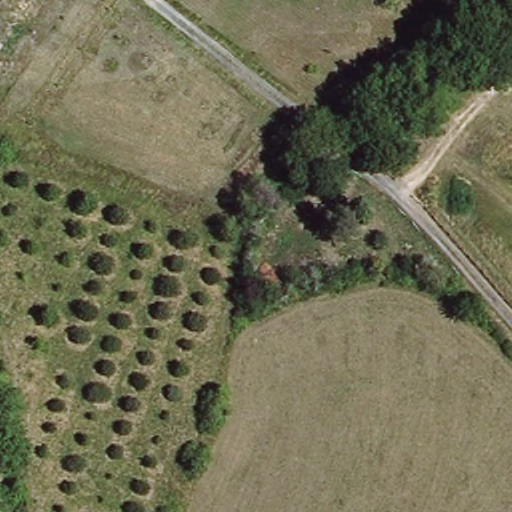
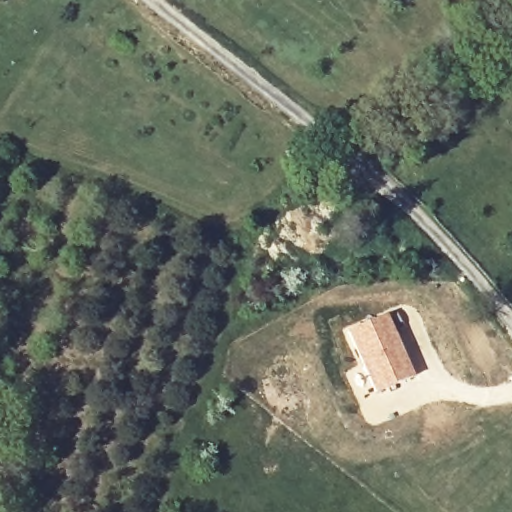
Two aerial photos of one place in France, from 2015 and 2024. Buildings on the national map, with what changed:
new [(387,313),(415,375),(375,394),(347,332),(387,313)]

